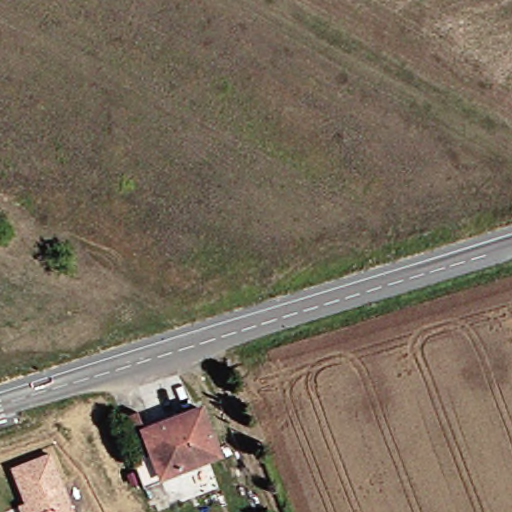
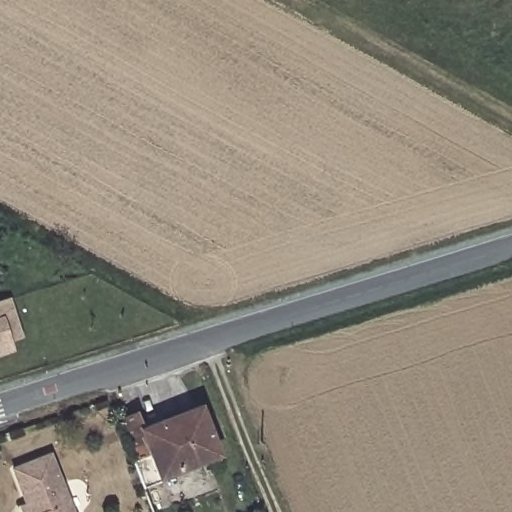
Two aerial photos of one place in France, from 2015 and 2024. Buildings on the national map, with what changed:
new [(9,300),(21,337),(12,351),(0,354),(0,295),(9,300)]
unchanged [(147,491),(138,466),(141,465),(125,423),(142,417),(150,438),(206,416),(224,461),(165,484),(147,491)]
unchanged [(21,507),(27,505),(13,470),(28,464),(51,455),(73,512),(22,512),(21,507)]

